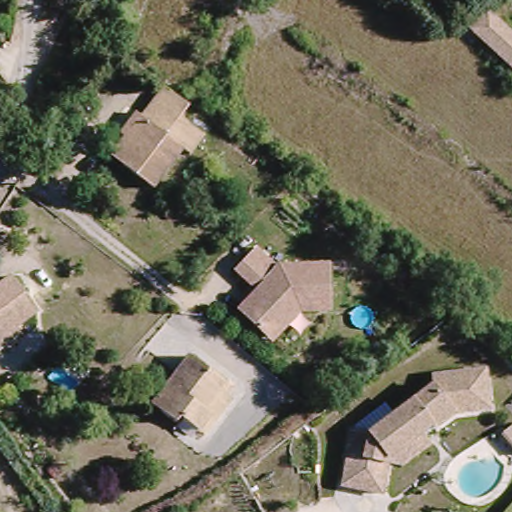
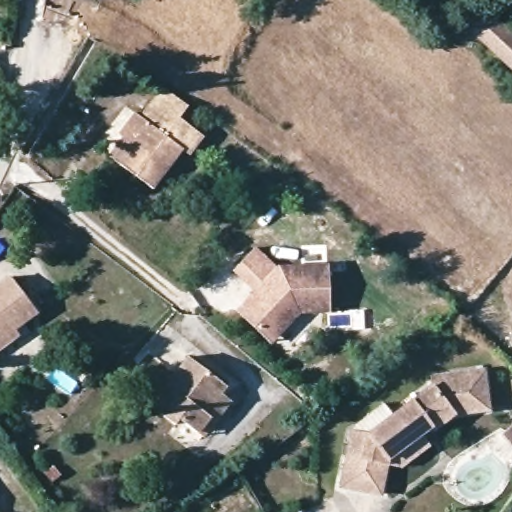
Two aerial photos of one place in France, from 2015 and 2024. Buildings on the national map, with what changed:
unchanged [(512,77),(462,30),(483,8),(512,36),(512,77)]
unchanged [(128,142),(121,134),(137,112),(144,117),(168,84),(195,107),(187,123),(210,139),(195,160),(185,153),(155,194),(123,168),(114,160),(128,142)]
unchanged [(328,317),(292,318),(267,345),(231,311),(248,293),(228,271),(253,247),(272,265),(325,265),(328,317)]
unchanged [(8,350),(0,357),(0,283),(12,273),(38,306),(22,320),(30,332),(8,350)]
unchanged [(200,427),(183,415),(176,424),(154,406),(182,355),(226,382),(223,387),(231,396),(222,411),(218,418),(209,433),(200,427)]
unchanged [(450,422),(421,441),(428,450),(396,476),(388,466),(383,500),(340,493),(349,435),(362,436),(431,386),(431,382),(489,375),(493,419),(450,422)]
unchanged [(512,424),(512,458),(497,438),(512,424)]

